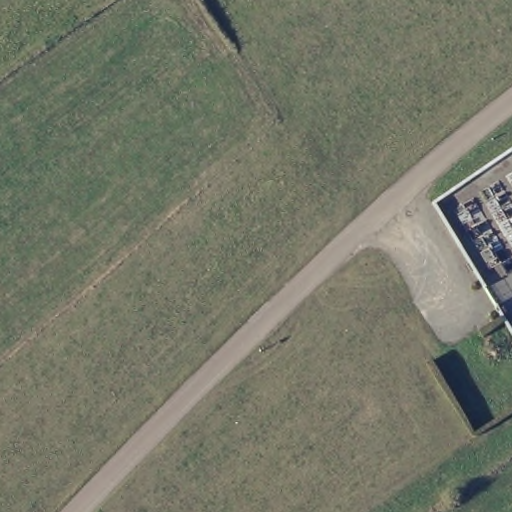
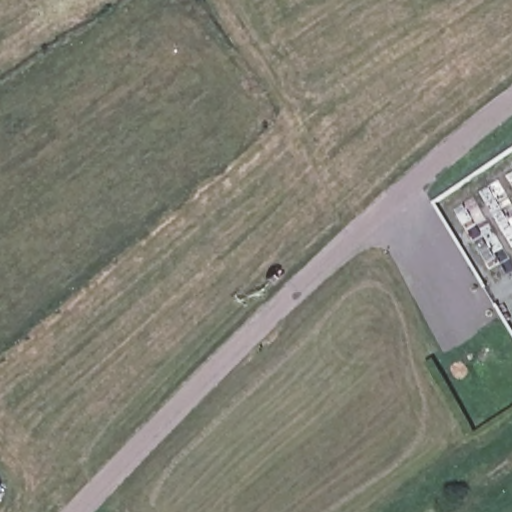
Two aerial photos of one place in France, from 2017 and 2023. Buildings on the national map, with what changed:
[]

